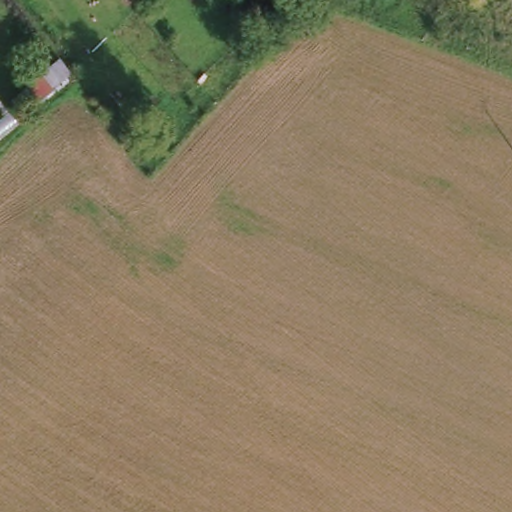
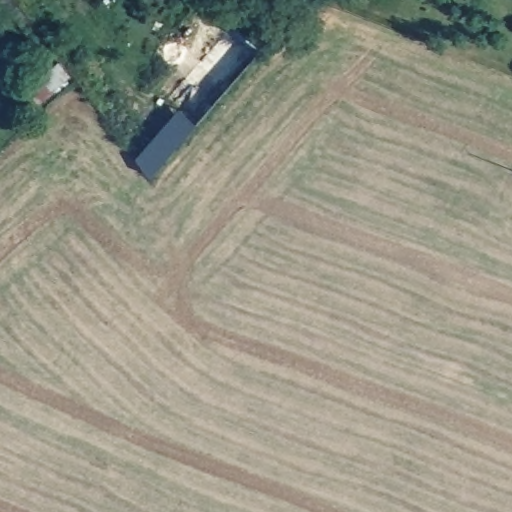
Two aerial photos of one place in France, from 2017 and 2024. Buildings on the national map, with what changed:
new [(198,124),(152,177),(137,157),(180,107),(198,124)]

